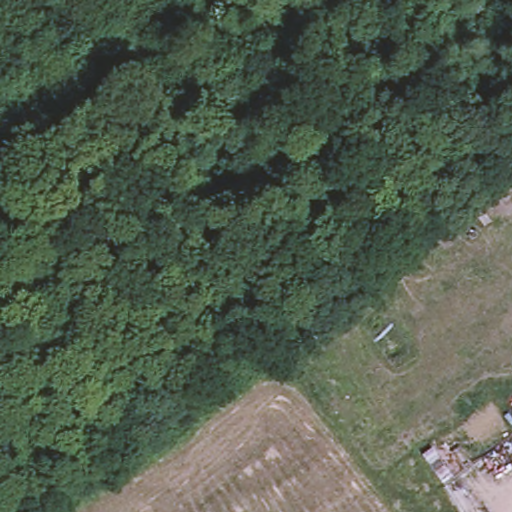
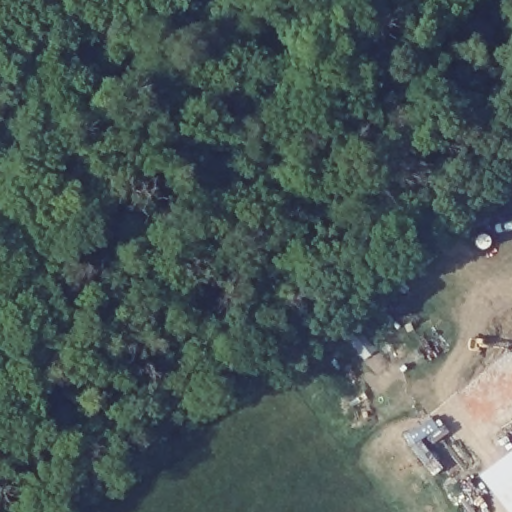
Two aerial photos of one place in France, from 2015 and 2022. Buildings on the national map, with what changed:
new [(477,475),(512,449),(512,512),(506,512),(477,475)]

